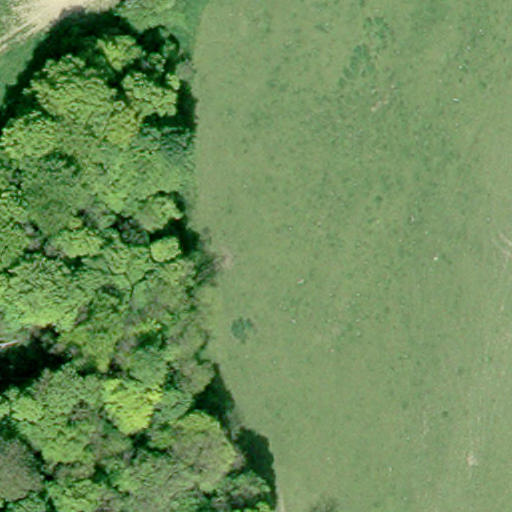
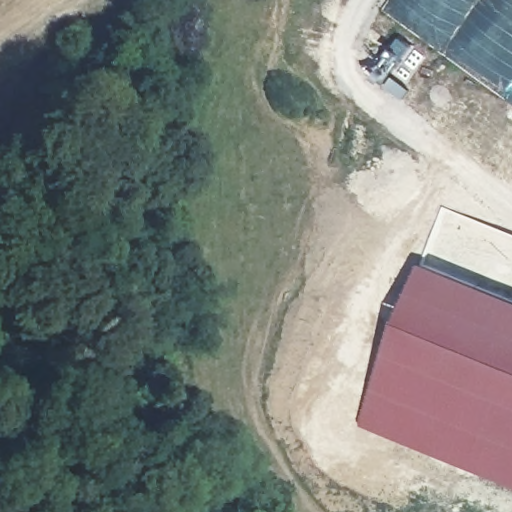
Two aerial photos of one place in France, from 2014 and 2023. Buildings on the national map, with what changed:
new [(512,305),(512,490),(360,432),(422,271),(512,305)]

